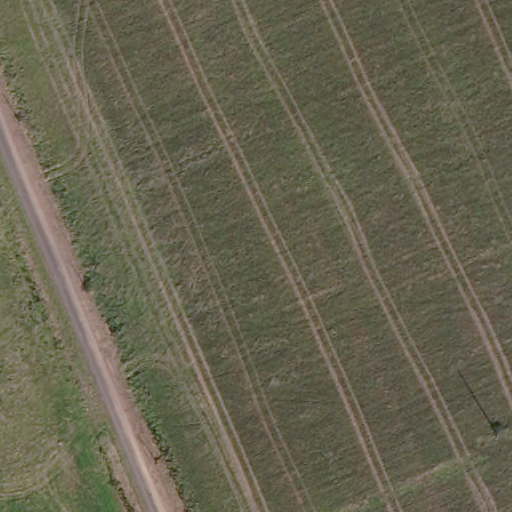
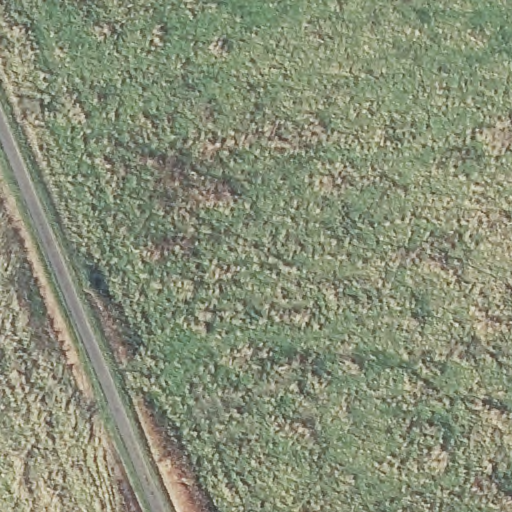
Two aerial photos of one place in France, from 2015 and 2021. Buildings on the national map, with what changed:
[]

